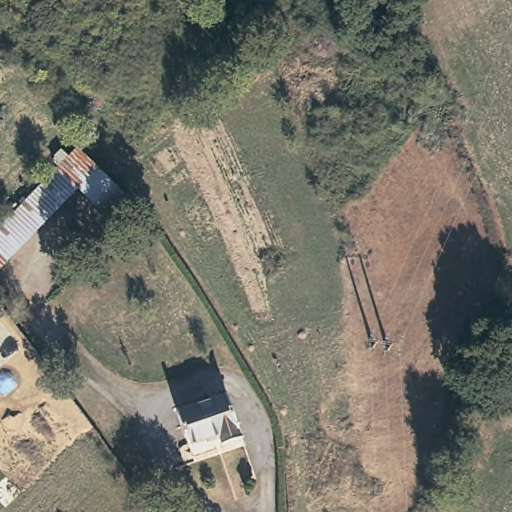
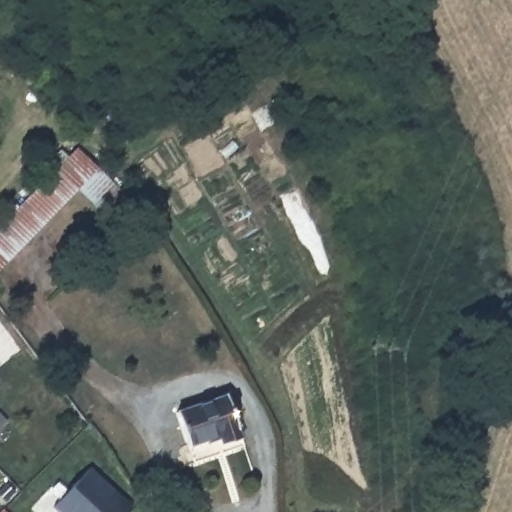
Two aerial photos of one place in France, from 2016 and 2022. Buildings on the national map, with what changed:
unchanged [(140,205),(122,224),(81,187),(0,272),(0,228),(77,146),(140,205)]
unchanged [(223,396),(241,441),(224,448),(220,437),(190,449),(175,413),(223,396)]
new [(91,469),(130,507),(125,512),(58,512),(54,508),(91,469)]

